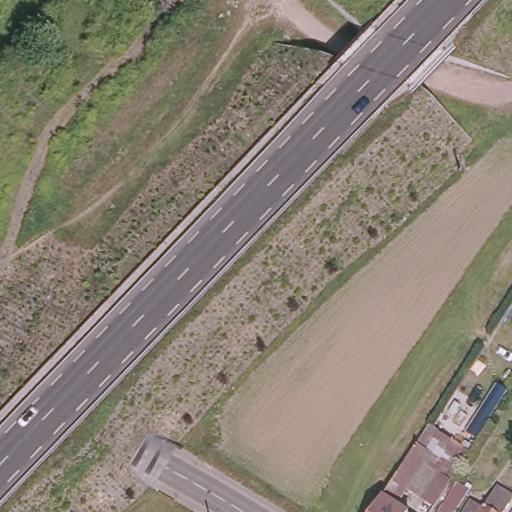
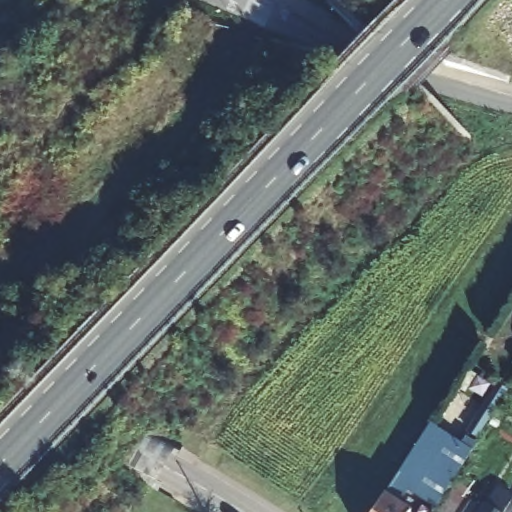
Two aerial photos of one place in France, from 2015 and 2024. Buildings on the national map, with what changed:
unchanged [(424,463),(430,452),(415,441),(430,420),(473,451),(457,477),(470,487),(455,512),(431,512),(452,482),(424,463)]
unchanged [(430,452),(424,463),(452,482),(431,512),(369,512),(415,441),(430,452)]
unchanged [(487,510),(500,490),(512,496),(512,502),(506,512),(470,512),(475,504),(487,510)]

